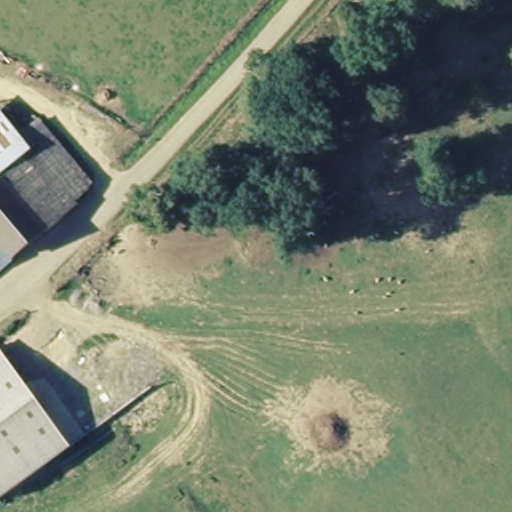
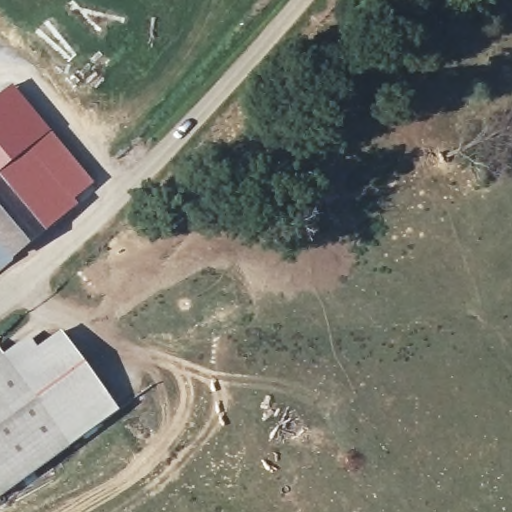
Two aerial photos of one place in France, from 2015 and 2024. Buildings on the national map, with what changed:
unchanged [(0,140),(0,108),(16,126),(0,140)]
unchanged [(0,140),(16,126),(37,157),(0,187),(0,140)]
unchanged [(79,212),(37,157),(59,138),(99,191),(79,212)]
unchanged [(0,187),(37,157),(79,212),(0,270),(0,187)]
new [(27,337),(36,350),(61,332),(119,413),(77,442),(64,426),(7,351),(27,337)]
unchanged [(64,426),(0,475),(0,341),(7,351),(64,426)]
unchanged [(4,497),(0,492),(0,475),(64,426),(77,442),(4,497)]

